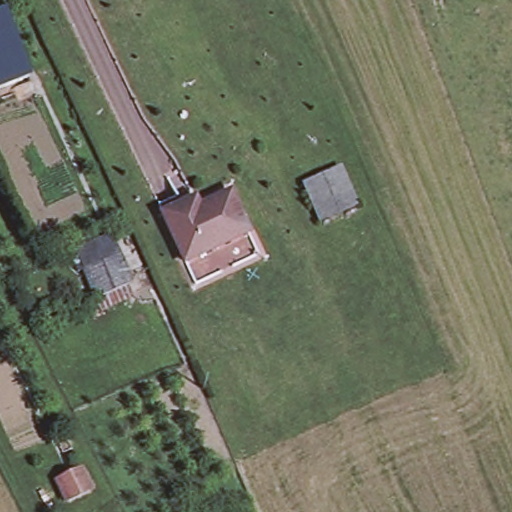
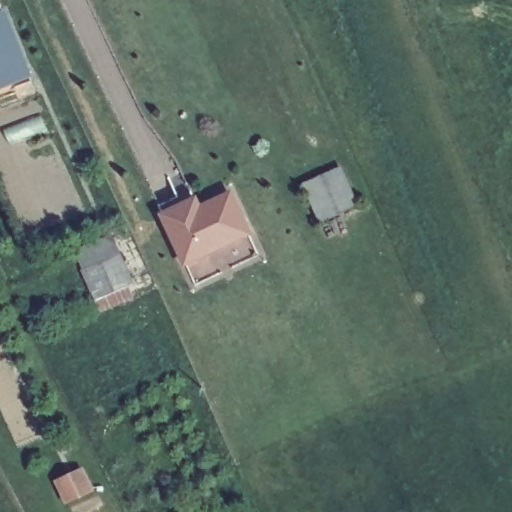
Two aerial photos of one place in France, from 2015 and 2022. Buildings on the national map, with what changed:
unchanged [(0,85),(0,12),(4,11),(29,72),(0,85)]
unchanged [(326,222),(322,223),(305,186),(309,184),(337,172),(343,169),(360,207),(354,209),(326,222)]
unchanged [(237,194),(256,233),(228,246),(210,207),(237,194)]
unchanged [(192,262),(170,214),(190,205),(202,200),(207,208),(210,207),(228,246),(192,262)]
unchanged [(79,252),(116,237),(139,298),(105,315),(79,252)]
unchanged [(95,492),(71,503),(62,486),(85,475),(95,492)]

